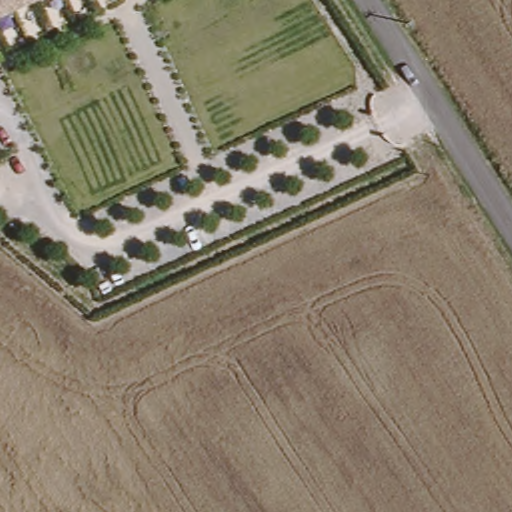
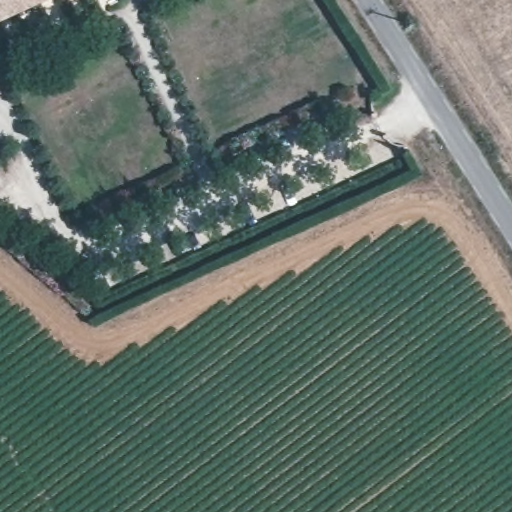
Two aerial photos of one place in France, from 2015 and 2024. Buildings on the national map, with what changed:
unchanged [(34,0),(0,16),(0,0),(34,0)]

